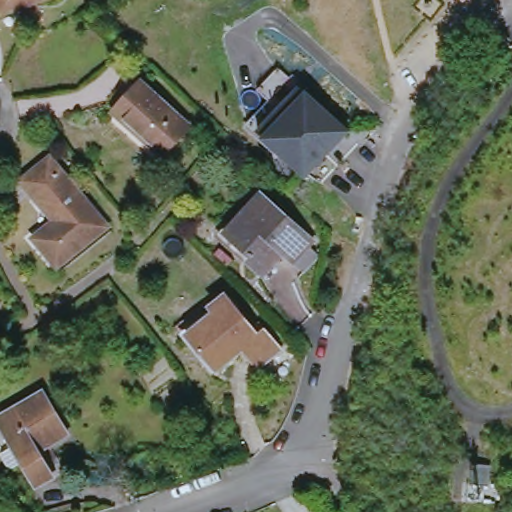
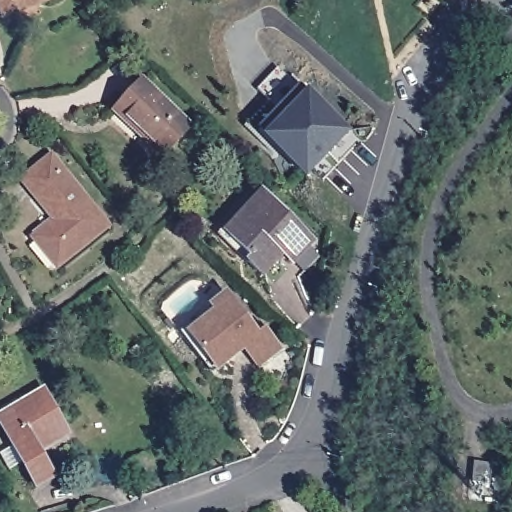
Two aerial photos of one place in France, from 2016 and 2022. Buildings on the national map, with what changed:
unchanged [(1,0),(51,0),(6,17),(1,0)]
unchanged [(191,127),(162,157),(114,112),(142,82),(191,127)]
unchanged [(346,136),(307,177),(261,134),(300,94),(303,89),(350,132),(346,136)]
unchanged [(58,267),(35,239),(59,220),(55,215),(51,217),(25,182),(52,160),(108,227),(58,267)]
unchanged [(306,272),(295,261),(294,263),(285,255),(263,276),(247,262),(251,258),(230,237),(250,215),(245,212),(262,194),(314,242),(310,247),(320,256),(306,272)]
unchanged [(216,311),(231,300),(257,332),(265,327),(286,353),(265,372),(248,356),(221,376),(192,339),(220,317),(216,311)]
unchanged [(145,354),(135,361),(130,352),(138,345),(145,354)]
unchanged [(5,455),(18,447),(3,418),(48,392),(73,436),(45,452),(60,478),(42,488),(27,462),(14,470),(5,455)]
unchanged [(493,468),(491,488),(472,487),(473,466),(493,468)]

